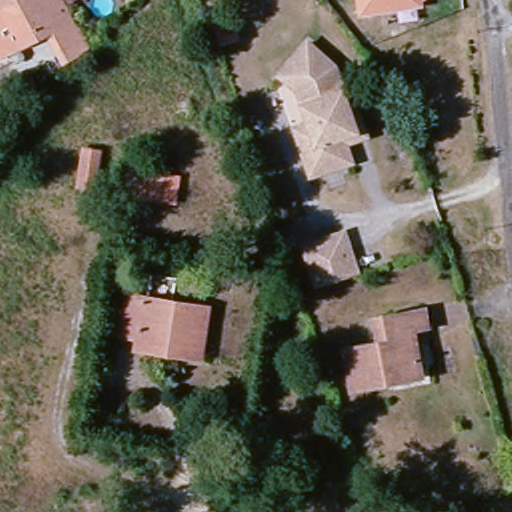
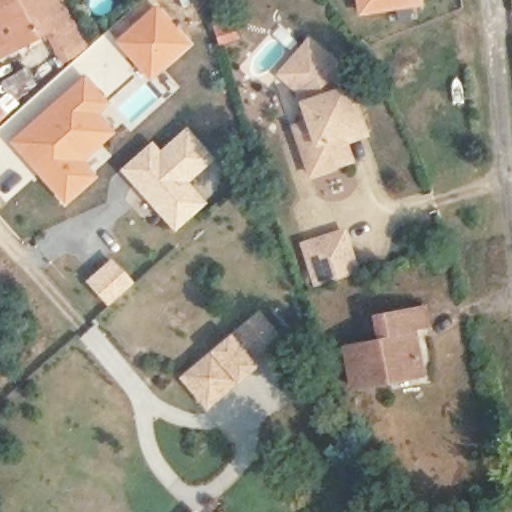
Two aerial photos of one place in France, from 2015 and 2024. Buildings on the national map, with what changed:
unchanged [(45,27),(0,50),(0,0),(62,0),(76,26),(89,51),(67,71),(45,27)]
unchanged [(359,18),(355,0),(417,0),(419,7),(359,18)]
new [(155,3),(192,44),(149,81),(115,40),(155,3)]
unchanged [(223,46),(218,31),(237,25),(242,39),(223,46)]
unchanged [(311,127),(300,96),(282,81),(310,47),(337,70),(350,108),(353,118),(359,135),(345,140),(354,166),(313,180),(304,153),(297,132),(311,127)]
new [(39,84),(11,103),(0,87),(0,85),(26,66),(39,84)]
new [(53,190),(11,142),(86,76),(110,104),(100,113),(116,133),(85,161),(99,176),(92,182),(68,176),(53,190)]
new [(161,149),(188,126),(216,160),(189,183),(207,204),(176,233),(119,170),(153,141),(161,149)]
demolished [(97,153),(93,194),(72,192),(76,151),(97,153)]
demolished [(151,200),(130,200),(134,168),(154,168),(151,200)]
unchanged [(320,285),(306,244),(347,231),(360,272),(320,285)]
new [(111,256),(134,282),(107,306),(85,280),(111,256)]
demolished [(197,305),(192,356),(173,354),(173,339),(147,337),(128,336),(117,335),(120,304),(121,297),(197,305)]
unchanged [(366,321),(413,306),(422,328),(406,334),(422,373),(354,396),(339,354),(373,342),(366,321)]
new [(278,339),(253,360),(259,365),(239,383),(207,412),(179,376),(257,312),(278,339)]
new [(198,512),(193,512),(196,510),(198,512)]

